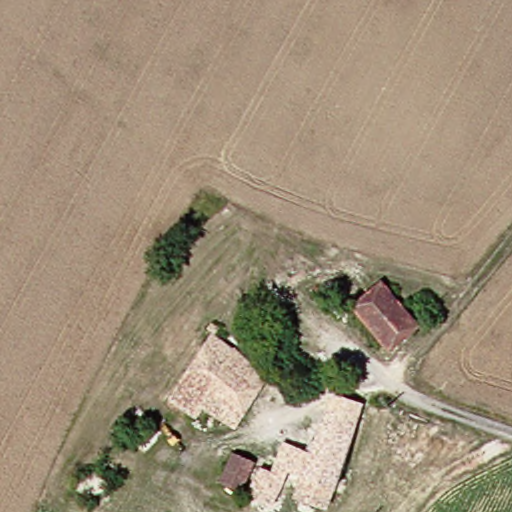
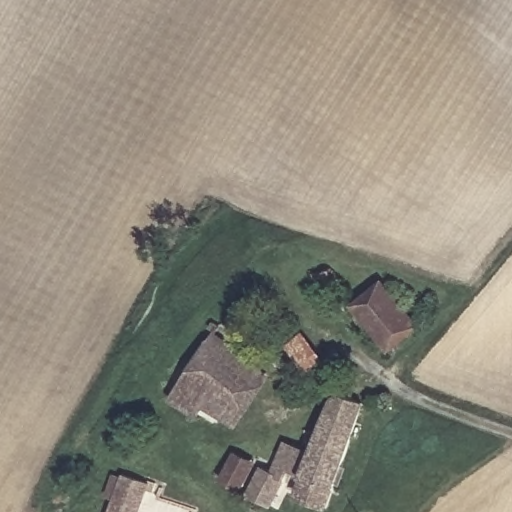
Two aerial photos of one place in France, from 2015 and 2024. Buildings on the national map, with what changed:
unchanged [(380,282),(419,329),(389,355),(349,309),(380,282)]
unchanged [(221,420),(199,407),(192,417),(164,399),(200,342),(210,324),(229,346),(224,355),(263,380),(256,390),(233,428),(221,420)]
unchanged [(354,425),(328,495),(283,474),(267,511),(245,501),(258,473),(269,479),(283,453),(306,463),(325,412),(354,425)]
unchanged [(234,461),(249,468),(237,495),(221,486),(234,461)]
new [(139,512),(108,512),(121,475),(148,483),(139,512)]

